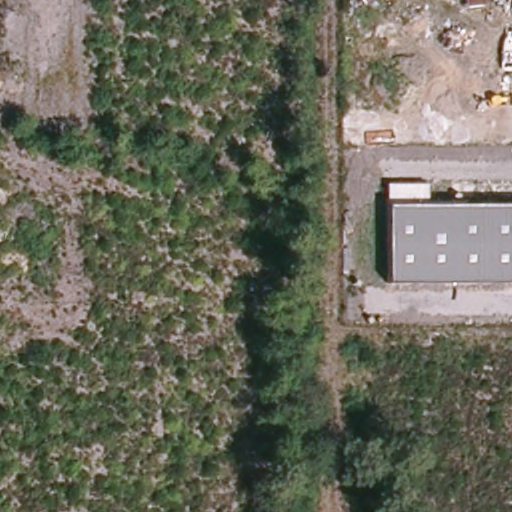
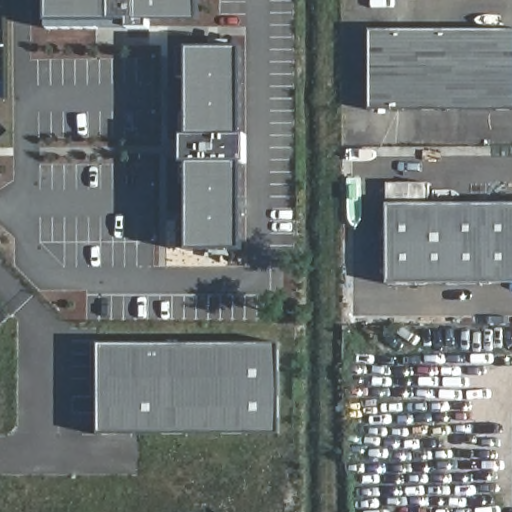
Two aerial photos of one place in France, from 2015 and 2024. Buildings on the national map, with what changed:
new [(47,0),(200,0),(200,23),(150,23),(149,31),(127,31),(127,24),(98,24),(98,30),(47,31),(47,0)]
new [(371,109),(371,28),(512,29),(512,109),(371,109)]
new [(179,222),(186,222),(189,80),(179,80),(179,50),(242,50),(242,137),(246,136),(247,164),(242,165),(242,251),(179,252),(179,222)]
unchanged [(386,282),(386,204),(386,184),(427,184),(426,204),(512,204),(512,282),(386,282)]
new [(280,344),(280,436),(98,436),(97,345),(280,344)]

